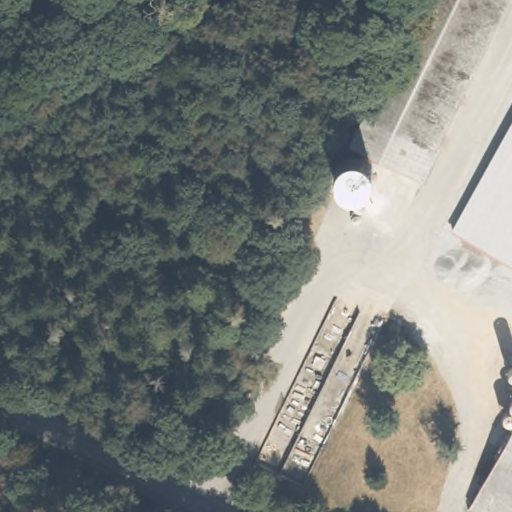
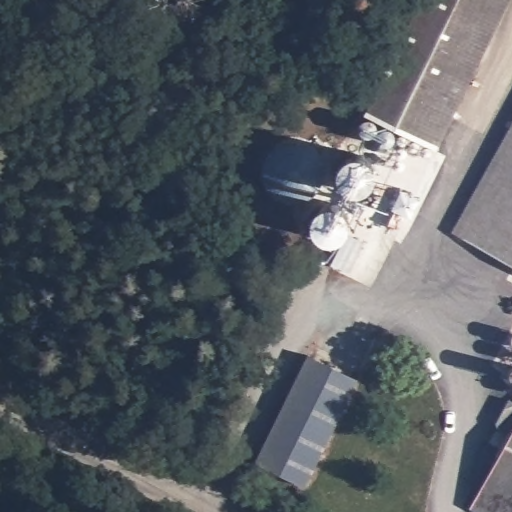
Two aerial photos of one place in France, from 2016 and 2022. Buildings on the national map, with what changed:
unchanged [(433,145),(376,118),(432,0),(504,0),(433,145)]
unchanged [(433,145),(423,176),(349,146),(361,112),(376,118),(433,145)]
unchanged [(452,230),(512,122),(512,263),(452,230)]
unchanged [(297,201),(284,200),(271,194),(262,181),(260,165),(270,147),(285,138),(303,139),(319,147),(325,158),(326,171),(324,183),(310,197),(297,201)]
unchanged [(355,195),(351,195),(345,195),(337,192),(332,189),(330,179),(328,173),(330,165),(335,162),(342,158),(362,161),(367,166),(368,173),(366,183),(364,187),(361,191),(355,195)]
unchanged [(335,241),(325,241),(315,236),(311,229),(310,222),(311,211),(318,205),(326,202),(333,203),(340,206),(345,211),(348,220),(348,227),(341,237),(335,241)]
new [(305,488),(255,463),(307,354),(359,377),(305,488)]
unchanged [(471,512),(512,435),(512,512),(471,512)]

